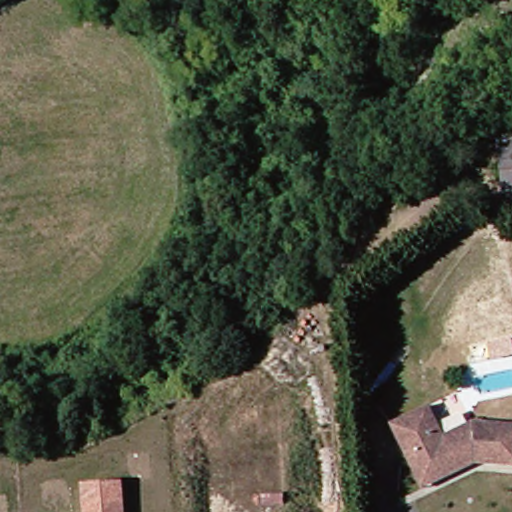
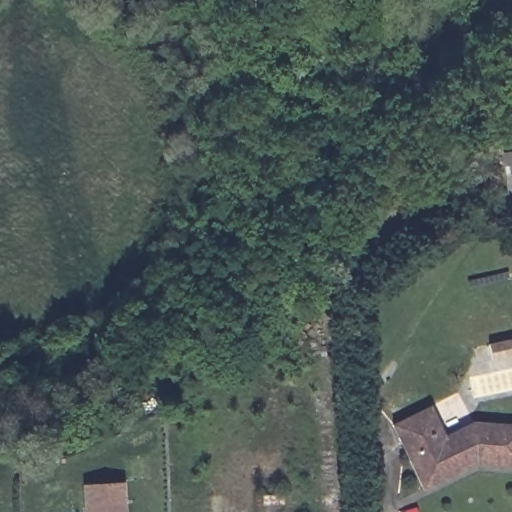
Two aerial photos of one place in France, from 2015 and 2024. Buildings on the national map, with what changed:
unchanged [(507,137),(512,137),(512,190),(508,148),(507,137)]
unchanged [(412,456),(397,426),(396,422),(433,404),(452,437),(481,422),(512,426),(512,467),(477,464),(438,483),(428,487),(412,456)]
unchanged [(85,483),(123,482),(125,512),(87,512),(85,483)]

